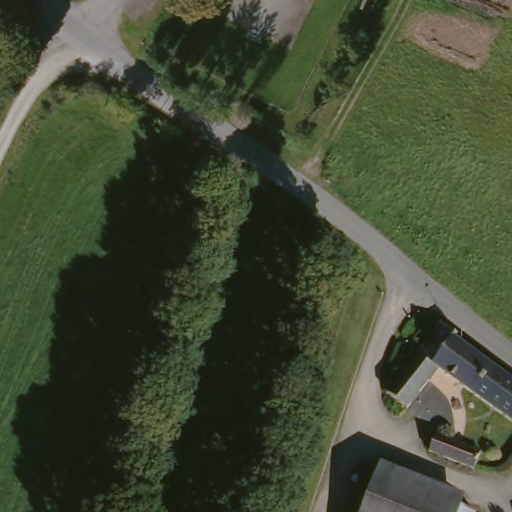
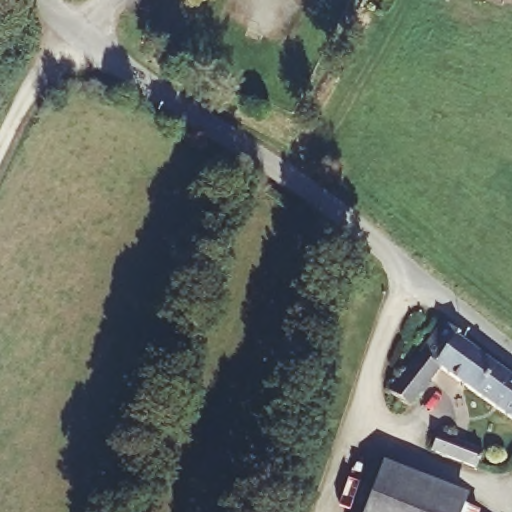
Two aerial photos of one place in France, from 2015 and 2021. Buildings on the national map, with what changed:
unchanged [(0,15),(0,0),(15,0),(18,4),(0,15)]
unchanged [(446,370),(440,367),(410,407),(392,394),(419,357),(442,323),(460,336),(457,341),(483,360),(495,368),(478,393),(446,370)]
unchanged [(512,380),(512,417),(478,393),(495,368),(512,380)]
unchanged [(484,446),(479,463),(449,453),(434,447),(440,432),(484,446)]
unchanged [(423,479),(462,494),(461,495),(454,512),(361,512),(381,463),(423,479)]
unchanged [(462,494),(477,500),(474,508),(472,512),(454,512),(461,495),(462,494)]
unchanged [(482,512),(472,512),(474,508),(482,512)]

